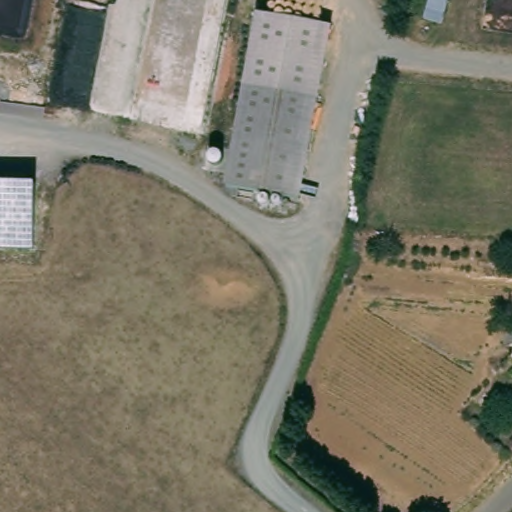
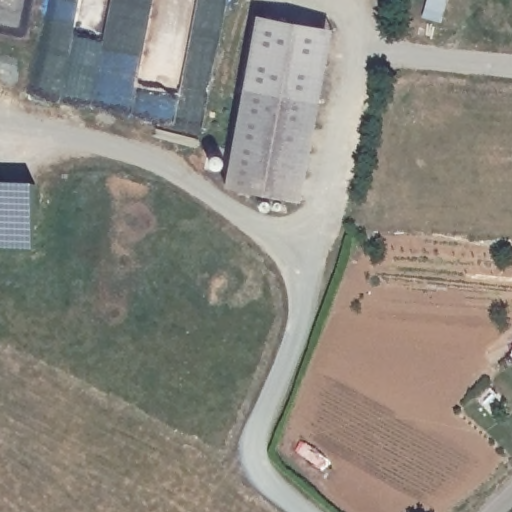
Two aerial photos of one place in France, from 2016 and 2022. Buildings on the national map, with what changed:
unchanged [(244,85),(257,9),(332,24),(320,98),(244,85)]
unchanged [(320,98),(303,199),(285,195),(262,190),(227,184),(244,85),(320,98)]
unchanged [(34,250),(0,249),(0,182),(37,184),(34,250)]

